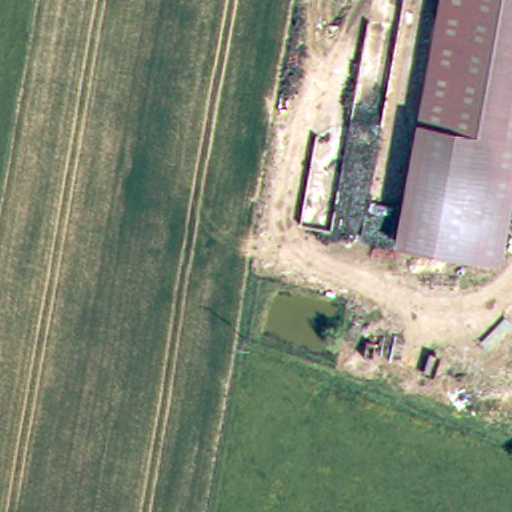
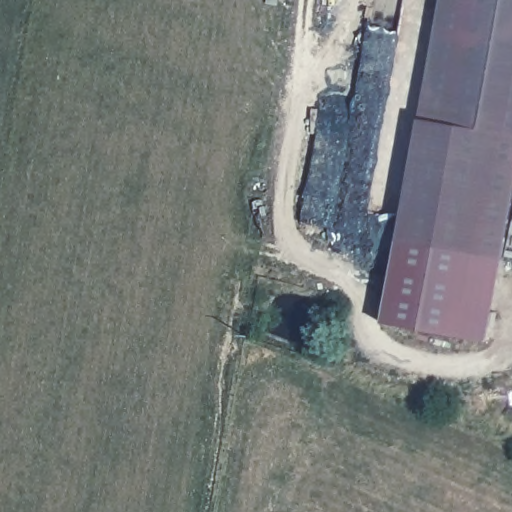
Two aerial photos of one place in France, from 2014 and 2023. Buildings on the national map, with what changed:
unchanged [(438,0),(512,0),(512,182),(498,251),(393,232),(438,0)]
new [(498,251),(505,253),(488,343),(381,324),(399,233),(498,251)]

